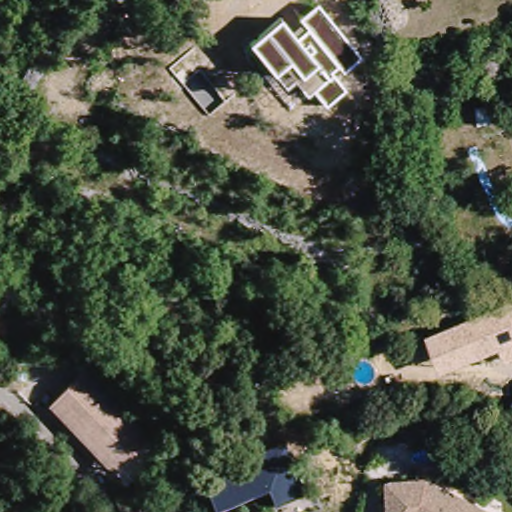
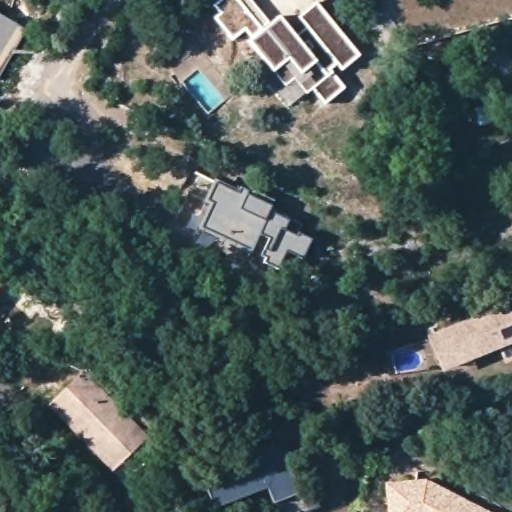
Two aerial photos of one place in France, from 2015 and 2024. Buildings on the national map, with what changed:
unchanged [(323,103),(311,89),(305,93),(294,79),(286,85),(274,69),(272,71),(248,41),(279,16),(294,36),(306,27),(298,16),(316,3),(359,56),(341,70),(336,63),(328,69),(331,73),(344,89),(323,103)]
new [(0,71),(0,17),(23,30),(0,71)]
new [(198,173),(271,205),(269,211),(288,220),(284,229),(309,241),(302,258),(285,250),(276,270),(262,264),(265,258),(198,228),(209,202),(189,193),(198,173)]
unchanged [(0,282),(0,275),(3,275),(0,282)]
unchanged [(506,363),(500,348),(441,372),(427,335),(512,300),(512,361),(506,363)]
unchanged [(106,462),(51,406),(84,374),(146,437),(129,453),(113,470),(106,462)]
unchanged [(271,500),(268,488),(213,509),(197,466),(283,436),(296,475),(308,472),(319,506),(304,512),(276,512),(271,500)]
unchanged [(391,482),(434,482),(487,512),(391,512),(391,482)]

